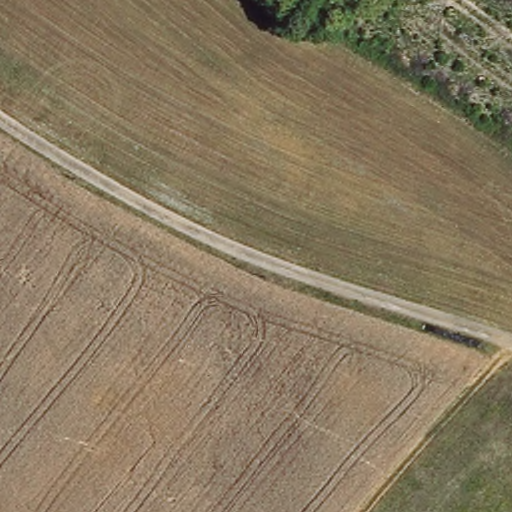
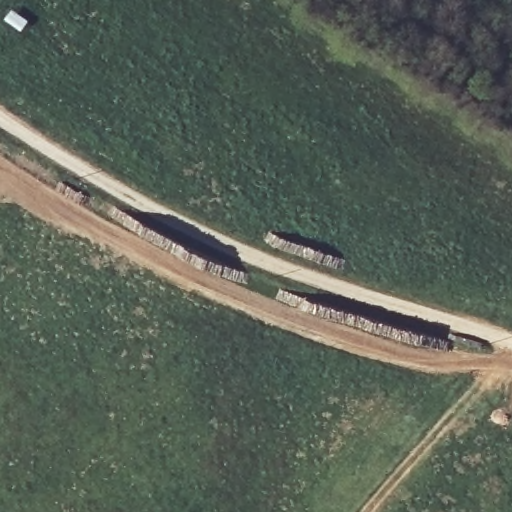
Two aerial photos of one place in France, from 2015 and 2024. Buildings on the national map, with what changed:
[]

